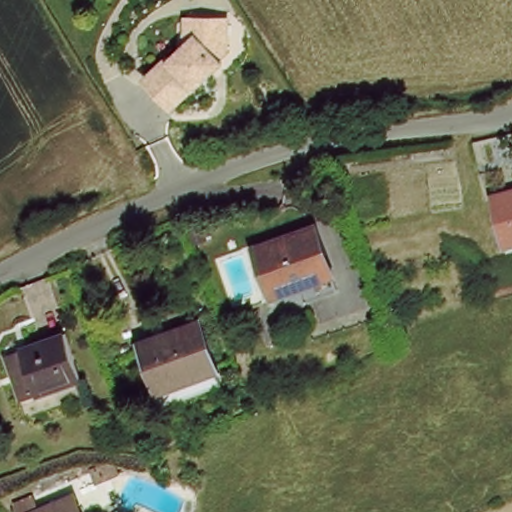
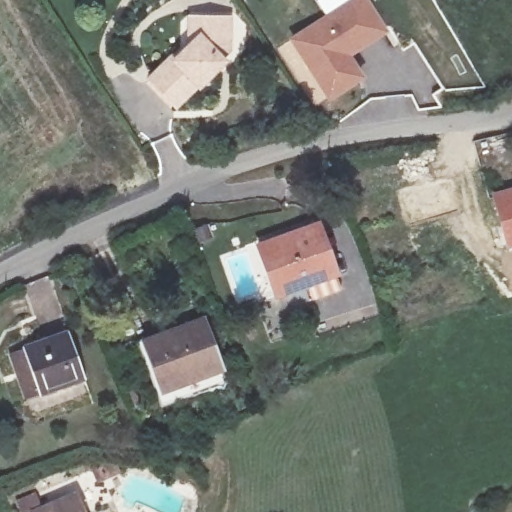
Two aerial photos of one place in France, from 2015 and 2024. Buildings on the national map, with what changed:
new [(317,1),(318,0),(369,0),(390,31),(352,57),(366,79),(330,103),(289,39),(326,16),(317,1)]
unchanged [(175,68),(178,70),(205,46),(204,29),(232,31),(233,60),(213,78),(216,81),(178,114),(153,85),(175,68)]
unchanged [(512,188),(512,248),(505,250),(487,195),(512,188)]
unchanged [(316,222),(340,269),(282,296),(259,248),(316,222)]
unchanged [(140,343),(197,316),(221,364),(163,390),(140,343)]
unchanged [(5,359),(16,354),(63,334),(86,380),(38,403),(27,408),(5,359)]
unchanged [(221,364),(229,379),(170,406),(163,390),(221,364)]
unchanged [(72,496),(81,512),(38,512),(72,496)]

